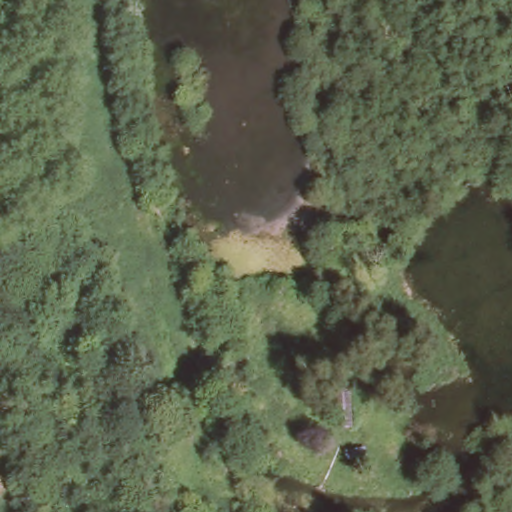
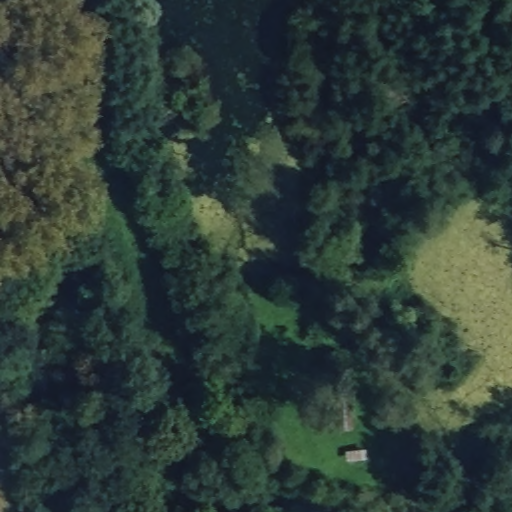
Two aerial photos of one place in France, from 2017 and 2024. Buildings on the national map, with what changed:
unchanged [(357,430),(340,431),(335,392),(353,393),(357,430)]

